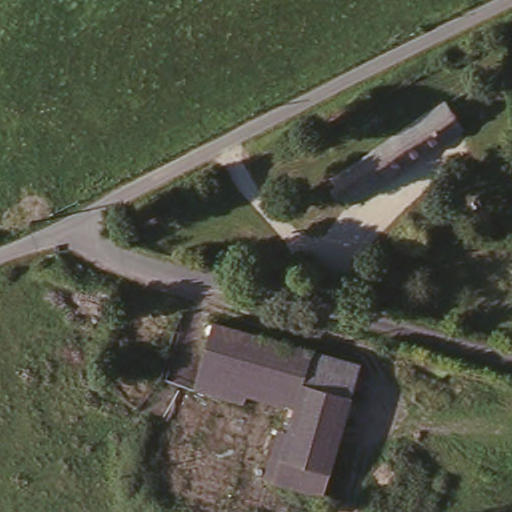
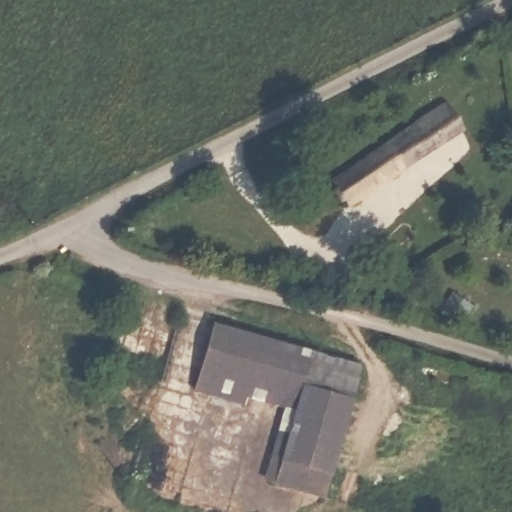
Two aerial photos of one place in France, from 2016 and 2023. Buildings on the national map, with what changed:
unchanged [(447,97),(462,121),(422,147),(376,176),(350,192),(334,170),(447,97)]
unchanged [(217,317),(362,360),(323,490),(268,474),(289,401),(249,390),(245,396),(198,383),(217,317)]

